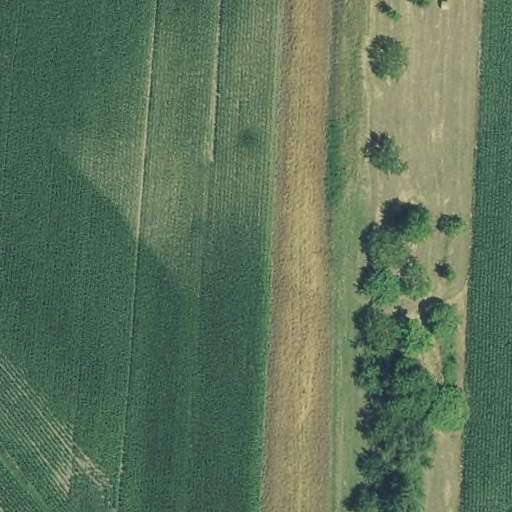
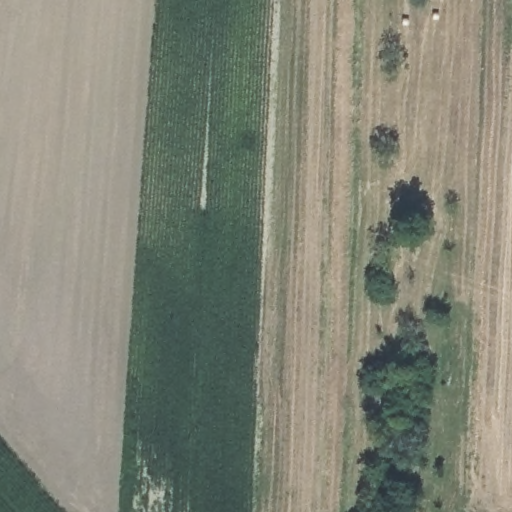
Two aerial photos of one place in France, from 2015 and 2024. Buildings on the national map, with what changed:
[]

